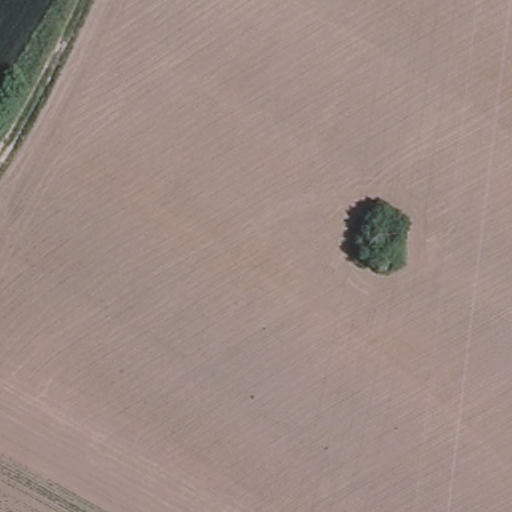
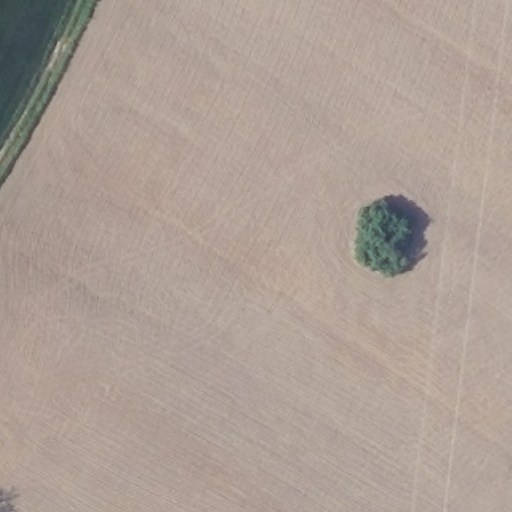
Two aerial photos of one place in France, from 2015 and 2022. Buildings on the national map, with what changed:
unchanged [(405,217),(394,251),(372,242),(383,204),(405,217)]

